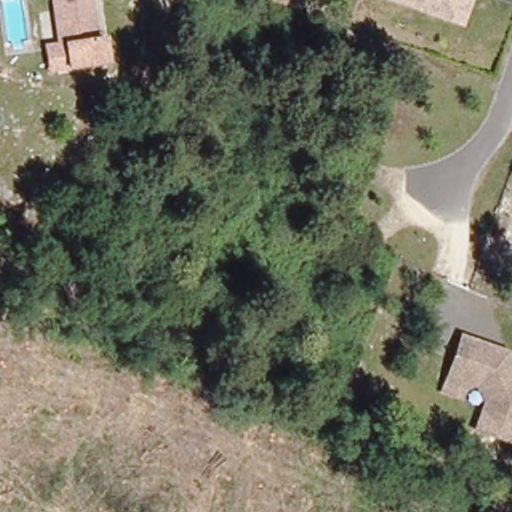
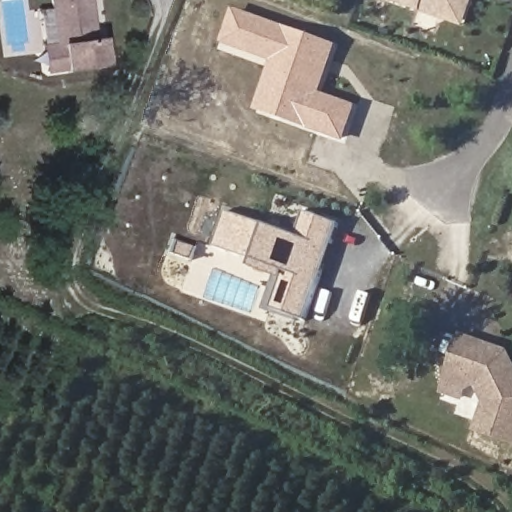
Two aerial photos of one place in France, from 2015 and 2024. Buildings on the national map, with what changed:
unchanged [(52,25),(49,0),(87,0),(90,20),(97,20),(100,45),(61,49),(55,50),(41,51),(40,45),(39,26),(52,25)]
unchanged [(420,10),(392,0),(473,0),(463,26),(420,10)]
new [(252,109),(270,60),(219,42),(231,7),(337,45),(320,91),(356,105),(343,142),(261,112),(252,109)]
new [(303,213),(337,225),(302,323),(260,309),(273,274),(250,266),(252,260),(212,245),(225,211),(295,236),(303,213)]
unchanged [(486,403),(468,387),(461,402),(439,395),(462,333),(509,351),(512,357),(512,447),(472,435),(486,403)]

